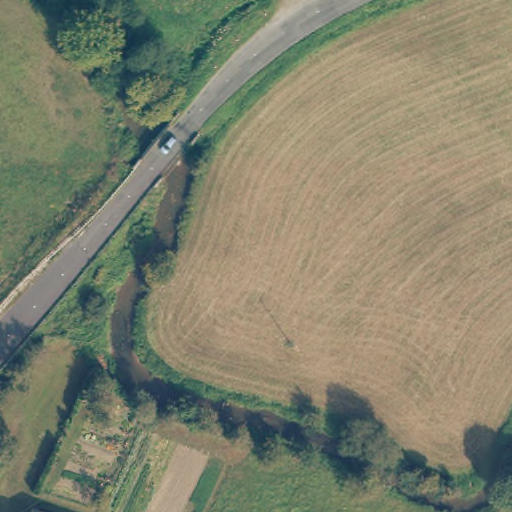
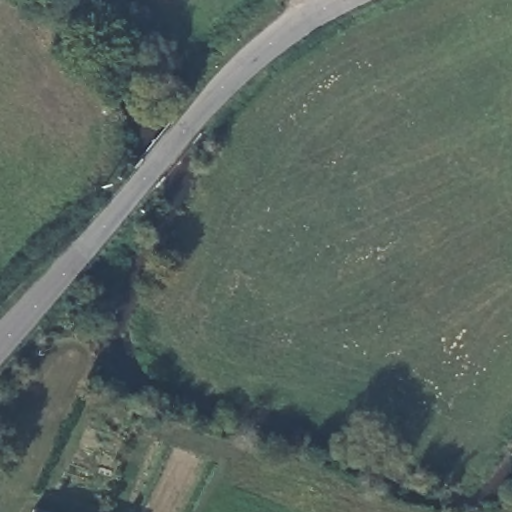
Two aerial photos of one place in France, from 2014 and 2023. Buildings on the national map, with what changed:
unchanged [(35,512),(34,512),(34,511),(35,512)]

